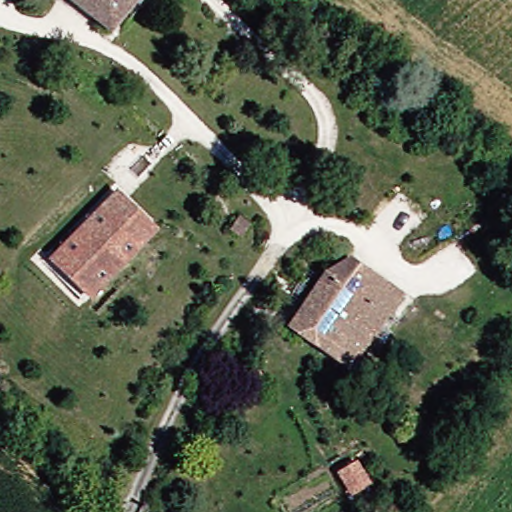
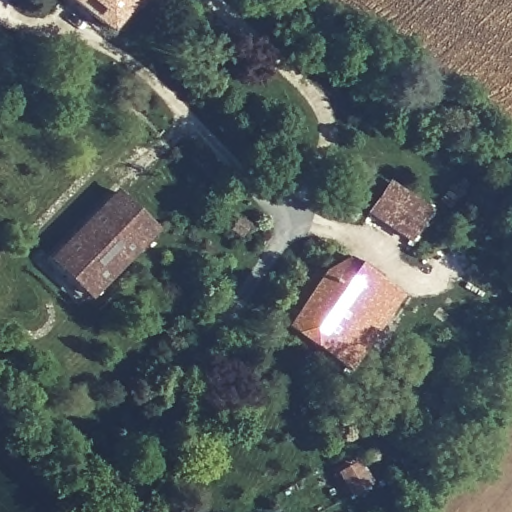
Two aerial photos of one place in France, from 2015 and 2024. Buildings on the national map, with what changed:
unchanged [(102,33),(72,0),(137,0),(102,33)]
new [(367,214),(389,181),(432,211),(409,244),(367,214)]
unchanged [(53,259),(118,191),(155,229),(90,296),(53,259)]
unchanged [(385,314),(344,368),(285,326),(326,269),(350,262),(396,298),(385,314)]

